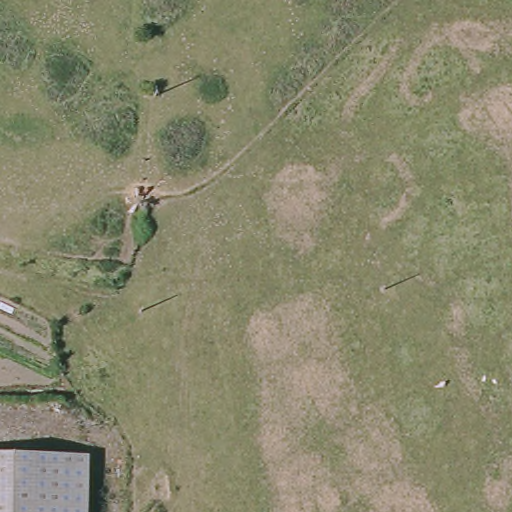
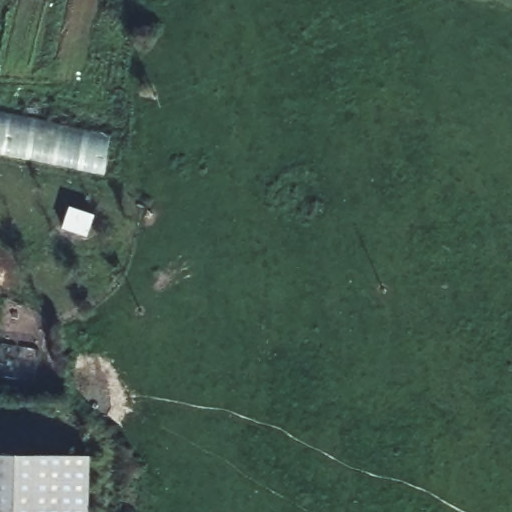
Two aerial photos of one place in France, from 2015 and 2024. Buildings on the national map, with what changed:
new [(0,154),(0,111),(111,135),(103,175),(0,154)]
unchanged [(77,461),(79,512),(0,512),(0,448),(74,448),(77,461)]

